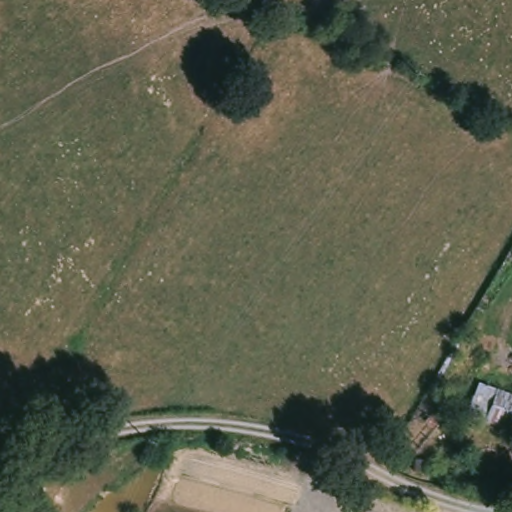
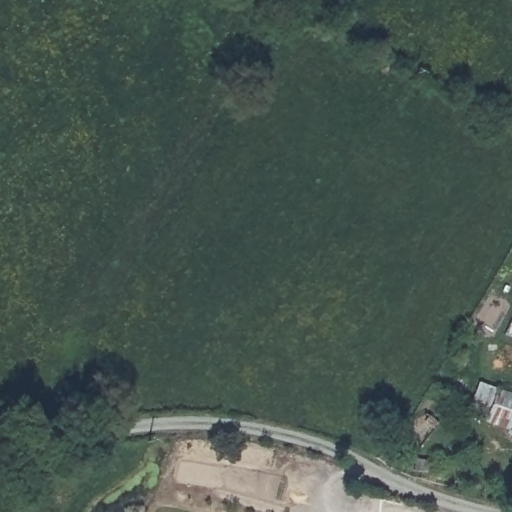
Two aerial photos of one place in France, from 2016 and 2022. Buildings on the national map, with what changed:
unchanged [(512,394),(512,431),(486,424),(466,418),(477,385),(496,390),(512,394)]

